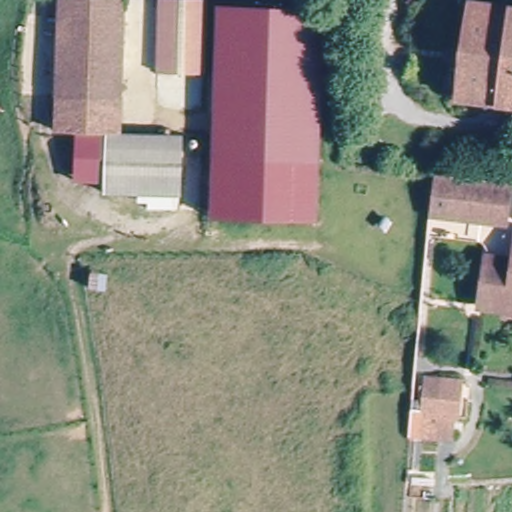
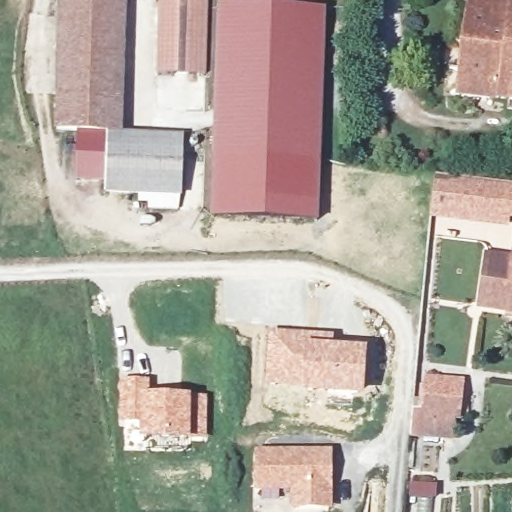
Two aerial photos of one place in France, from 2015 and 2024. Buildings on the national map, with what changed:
unchanged [(57,0),(78,0),(120,2),(120,137),(109,137),(75,136),(55,135),(57,0)]
unchanged [(162,56),(164,0),(209,0),(207,72),(161,70),(162,56)]
unchanged [(512,4),(512,110),(503,109),(504,101),(455,94),(467,0),(485,0),(512,4)]
unchanged [(217,6),(325,10),(318,222),(210,217),(217,6)]
new [(75,136),(109,137),(107,165),(106,184),(74,182),(75,136)]
unchanged [(106,184),(107,165),(109,137),(120,137),(130,137),(185,139),(184,202),(110,201),(106,200),(106,184)]
unchanged [(437,180),(505,188),(503,221),(502,231),(436,223),(436,213),(437,180)]
unchanged [(477,313),(482,264),(508,267),(510,258),(511,239),(512,239),(512,316),(477,313)]
new [(268,332),(333,335),(333,345),(366,348),(364,397),(326,395),(265,386),(268,332)]
new [(119,382),(150,380),(150,395),(207,396),(207,440),(139,440),(138,422),(119,422),(119,382)]
unchanged [(426,383),(460,390),(453,430),(419,425),(426,383)]
new [(332,448),(333,509),(288,510),(286,492),(254,491),(253,450),(332,448)]

